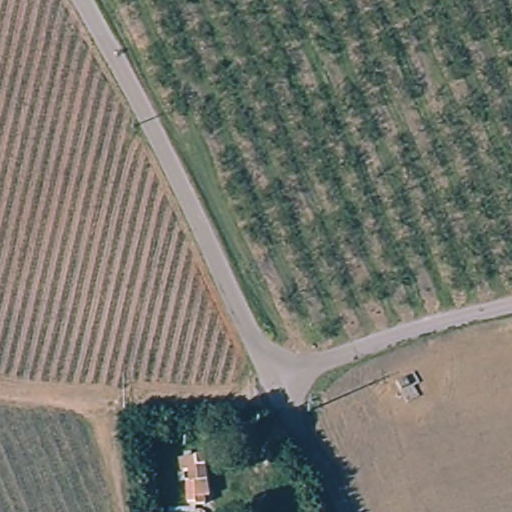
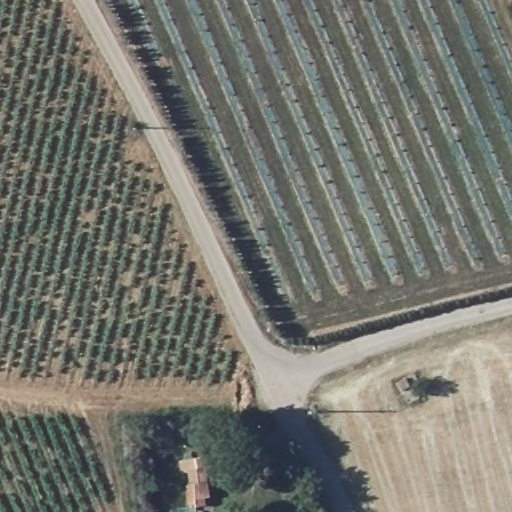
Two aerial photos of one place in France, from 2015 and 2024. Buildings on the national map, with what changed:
unchanged [(208,457),(210,512),(194,512),(192,483),(186,483),(184,473),(178,473),(177,457),(208,457)]

